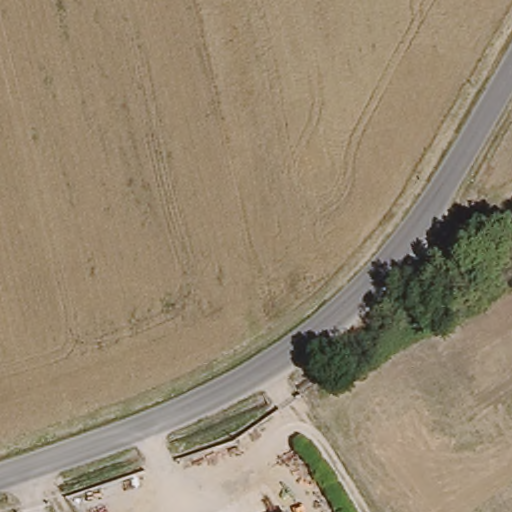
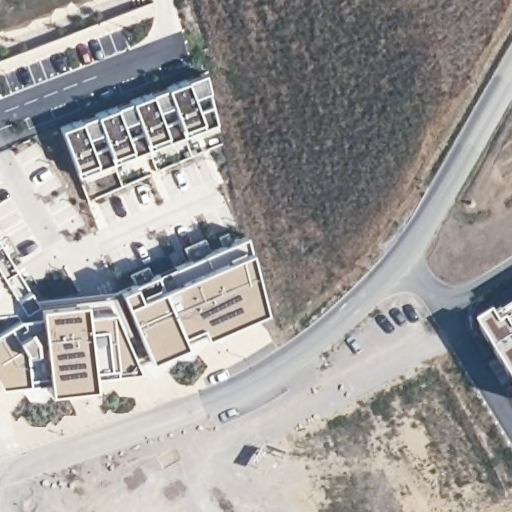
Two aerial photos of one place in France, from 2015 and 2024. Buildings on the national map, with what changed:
new [(77,169),(61,127),(186,80),(204,73),(208,90),(216,124),(79,175),(77,169)]
new [(263,306),(203,332),(199,322),(179,331),(183,342),(150,359),(118,289),(132,282),(244,234),(248,249),(263,306)]
new [(33,299),(78,295),(118,289),(150,359),(132,363),(87,367),(86,358),(41,366),(42,374),(0,379),(0,245),(33,299)]
new [(500,326),(502,328),(512,321),(512,383),(483,336),(500,326)]
unchanged [(290,512),(285,512),(289,510),(290,512)]

